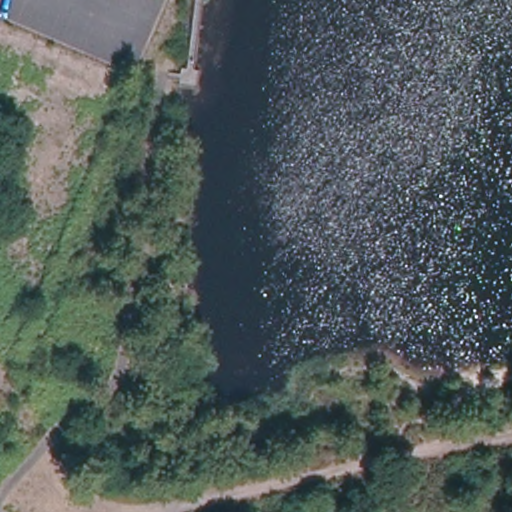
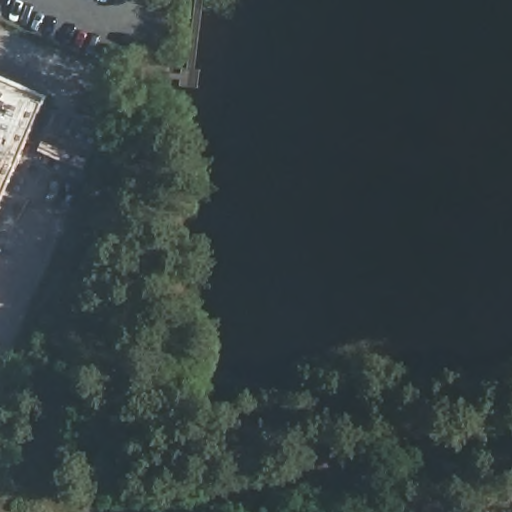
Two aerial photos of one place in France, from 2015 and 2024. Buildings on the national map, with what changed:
new [(48,96),(43,104),(0,206),(0,76),(48,96)]

